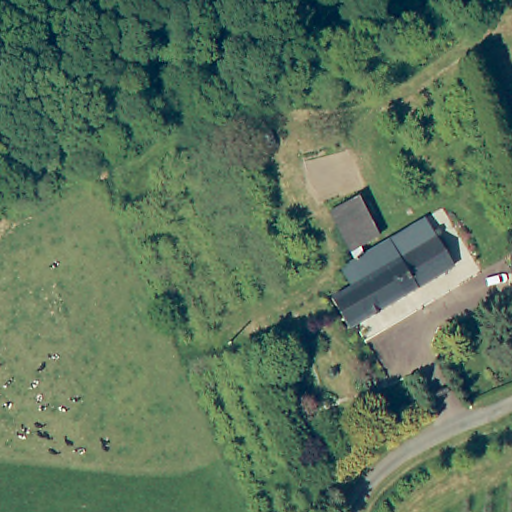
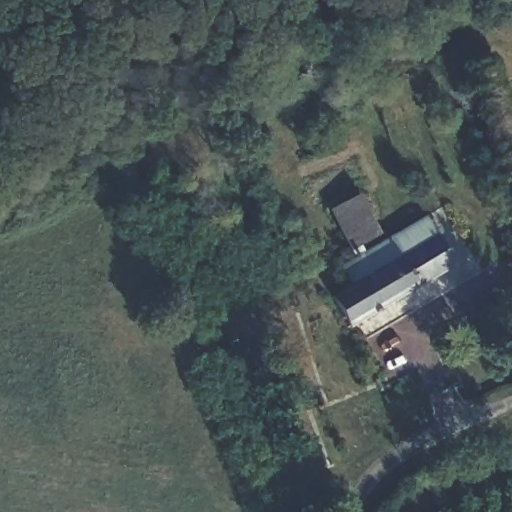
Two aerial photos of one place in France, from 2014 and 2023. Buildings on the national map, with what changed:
unchanged [(380,231),(351,250),(328,208),(358,190),(380,231)]
unchanged [(345,275),(341,268),(425,217),(435,235),(373,272),(352,285),(345,275)]
unchanged [(456,265),(348,326),(331,297),(352,285),(373,272),(435,235),(456,265)]
unchanged [(510,246),(512,246),(512,275),(510,246)]

